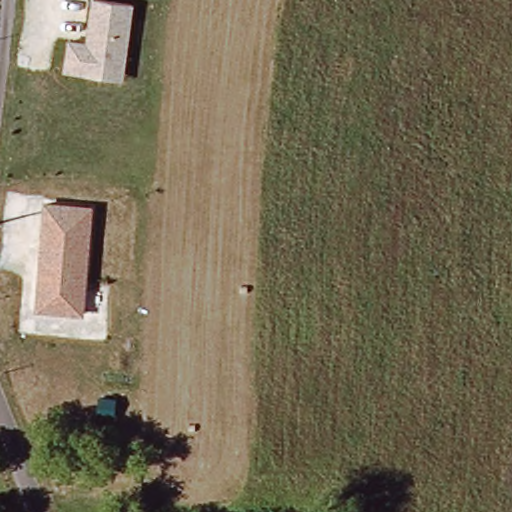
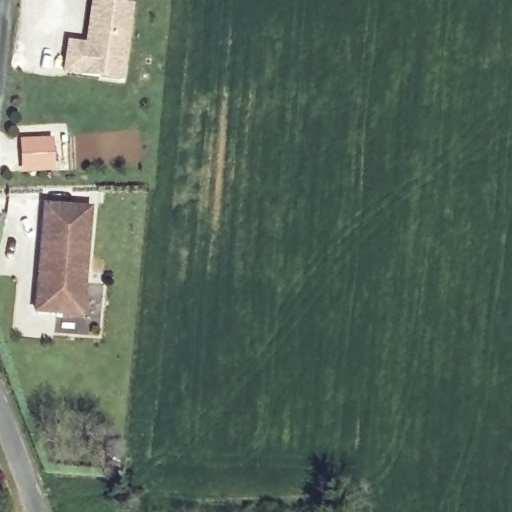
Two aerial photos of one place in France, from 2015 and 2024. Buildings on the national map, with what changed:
unchanged [(134,6),(125,84),(64,76),(69,41),(87,45),(93,0),(134,6)]
new [(54,138),(54,170),(21,172),(21,139),(54,138)]
unchanged [(94,205),(84,320),(32,314),(42,202),(94,205)]

